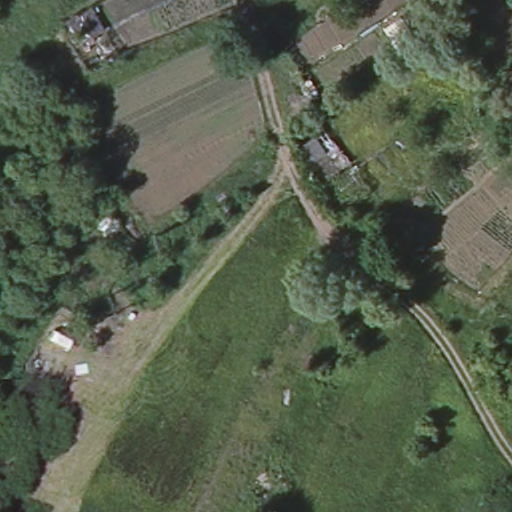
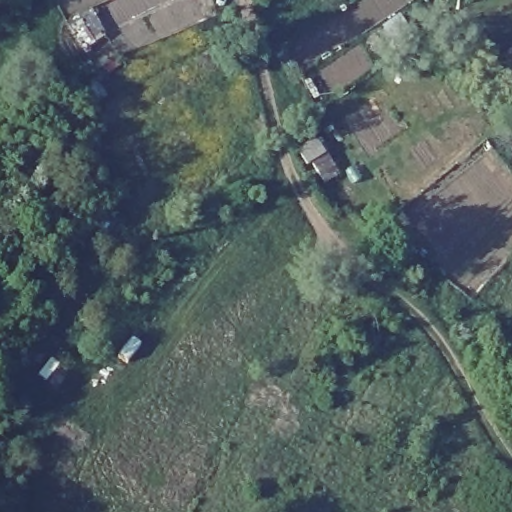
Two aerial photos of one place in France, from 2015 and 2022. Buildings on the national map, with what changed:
unchanged [(351,161),(321,184),(295,147),(325,127),(351,161)]

